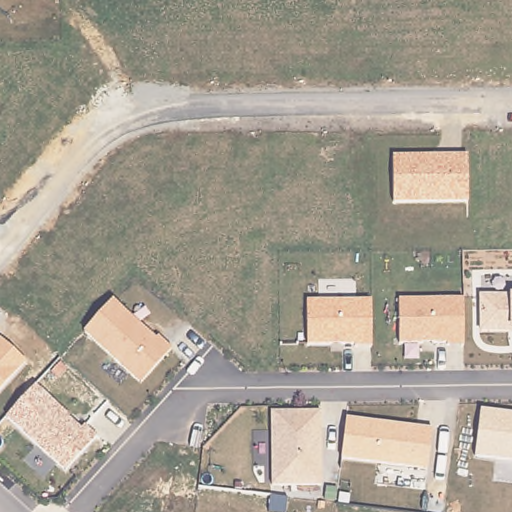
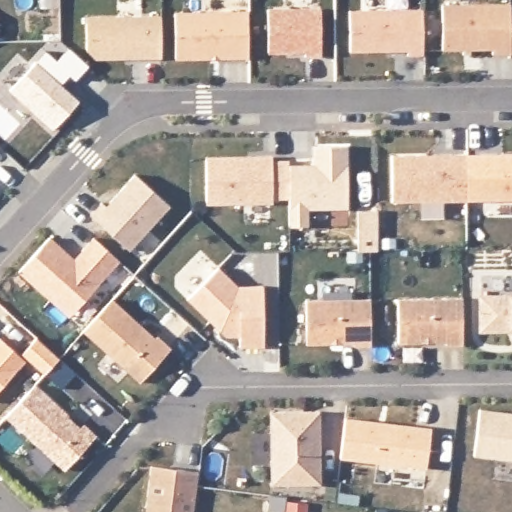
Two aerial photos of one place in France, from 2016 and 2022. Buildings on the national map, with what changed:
new [(442,4),(512,3),(512,11),(510,11),(512,55),(492,56),(491,50),(443,51),(442,4)]
unchanged [(322,7),(323,57),(304,57),(303,53),(268,53),(269,8),(322,7)]
new [(351,10),(424,9),(426,56),(408,56),(408,50),(350,53),(351,10)]
unchanged [(175,13),(250,11),(250,60),(175,61),(175,13)]
unchanged [(512,11),(512,55),(510,11),(512,11)]
new [(156,14),(157,56),(91,56),(82,48),(82,15),(156,14)]
new [(46,49),(57,60),(70,46),(90,66),(77,81),(71,76),(63,85),(80,100),(55,130),(10,91),(46,49)]
new [(269,196),(285,195),(285,160),(291,160),(291,164),(315,164),(315,146),(349,145),(350,209),(309,209),(310,227),(290,227),(291,209),(290,209),(290,199),(269,200),(269,196)]
new [(512,154),(512,201),(468,201),(466,155),(512,154)]
unchanged [(391,156),(466,155),(468,201),(392,201),(391,156)]
new [(268,156),(268,161),(285,160),(285,195),(269,196),(269,200),(202,201),(201,156),(268,156)]
new [(104,202),(109,206),(137,174),(172,206),(131,250),(93,214),(104,202)]
new [(50,236),(75,258),(95,237),(121,262),(70,318),(19,272),(50,236)]
new [(220,266),(239,285),(265,285),(266,347),(240,348),(240,337),(227,337),(187,300),(220,266)]
unchanged [(479,294),(508,295),(512,294),(512,333),(480,333),(479,294)]
unchanged [(152,335),(162,334),(176,347),(138,383),(82,331),(115,298),(152,335)]
unchanged [(372,299),(372,343),(307,344),(306,300),(372,299)]
unchanged [(463,299),(463,346),(447,345),(446,343),(399,343),(397,299),(463,299)]
unchanged [(0,391),(0,338),(26,362),(0,391)]
unchanged [(36,338),(60,359),(44,375),(22,356),(36,338)]
unchanged [(36,385),(81,427),(85,423),(97,436),(65,470),(7,416),(36,385)]
unchanged [(512,412),(512,460),(474,456),(480,409),(512,412)]
unchanged [(322,485),(272,486),(271,412),(320,411),(322,485)]
unchanged [(427,469),(339,457),(345,418),(432,428),(427,469)]
unchanged [(151,467),(199,471),(194,512),(146,512),(151,467)]

